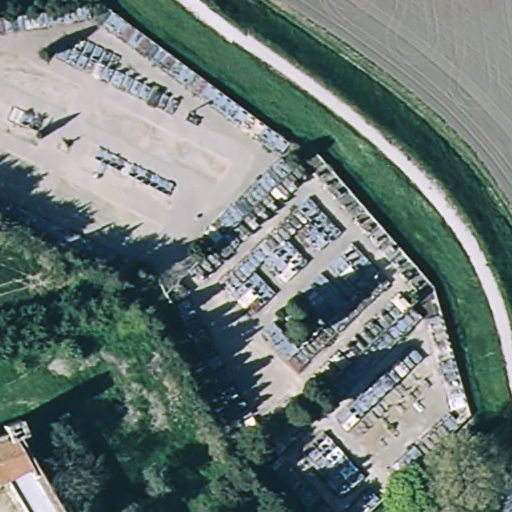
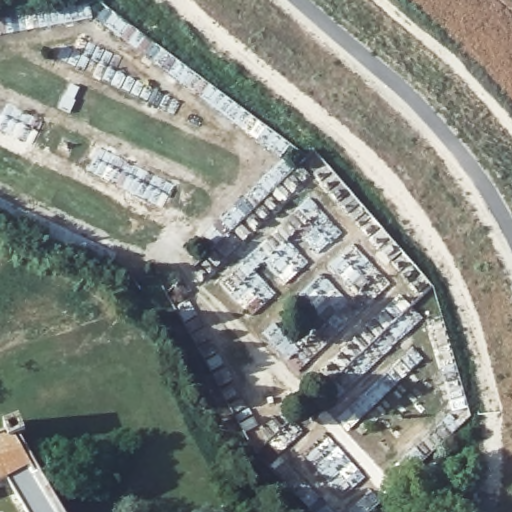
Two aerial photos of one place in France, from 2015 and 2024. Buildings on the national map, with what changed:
unchanged [(8,486),(0,489),(0,440),(3,439),(2,431),(20,426),(25,442),(20,444),(59,512),(23,512),(8,486)]

